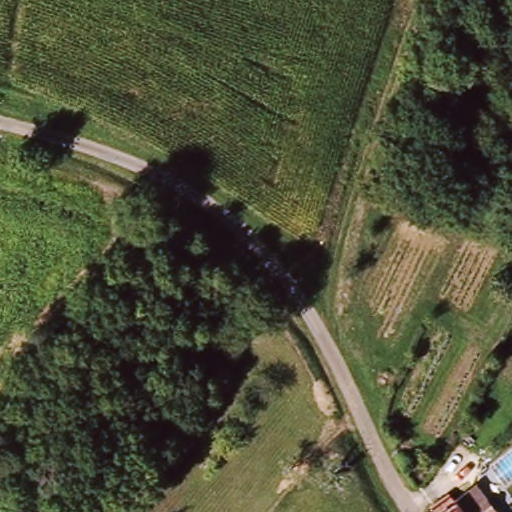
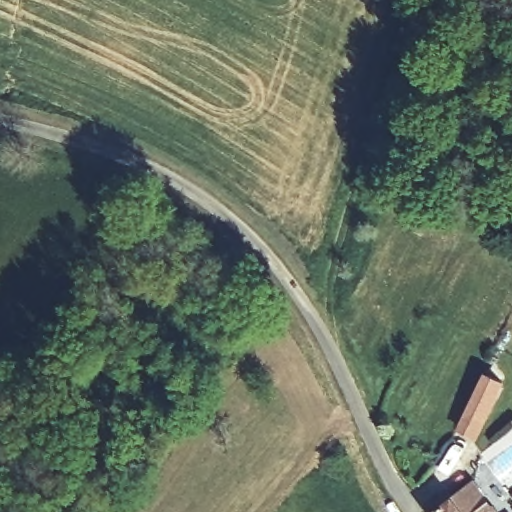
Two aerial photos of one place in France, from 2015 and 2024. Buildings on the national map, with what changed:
new [(477,439),(457,428),(486,371),(506,381),(477,439)]
unchanged [(467,496),(485,485),(502,512),(469,512),(462,500),(467,496)]
unchanged [(437,506),(455,495),(459,501),(462,500),(469,512),(441,512),(437,506)]

